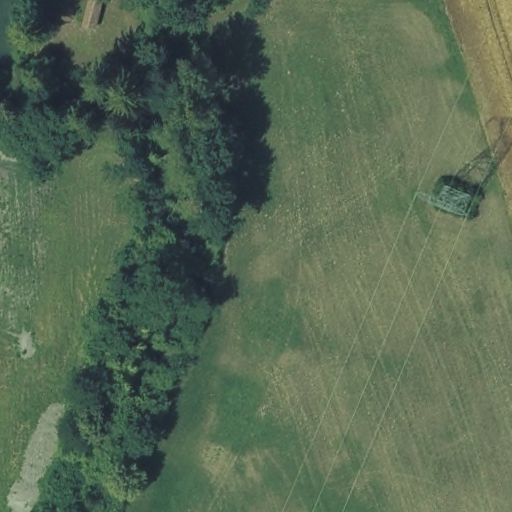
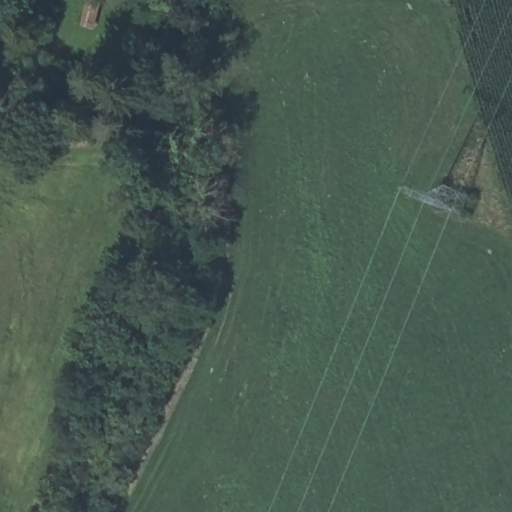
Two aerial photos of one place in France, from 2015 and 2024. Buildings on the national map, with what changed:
unchanged [(81,0),(99,0),(98,27),(78,24),(81,0)]

